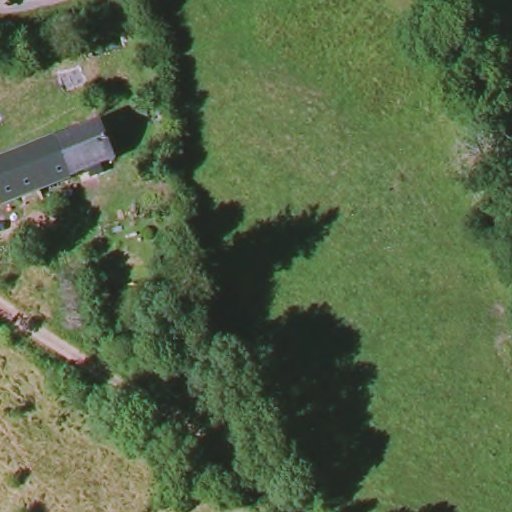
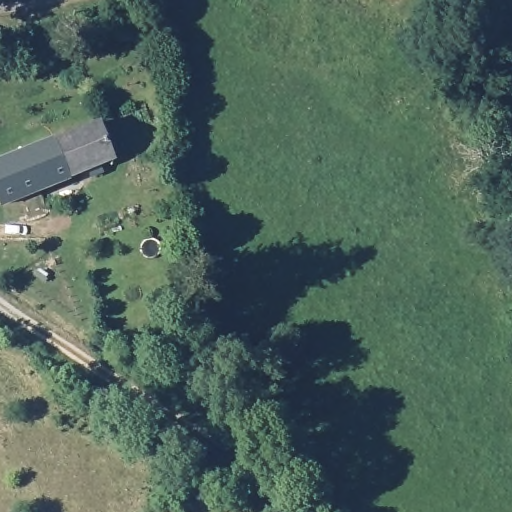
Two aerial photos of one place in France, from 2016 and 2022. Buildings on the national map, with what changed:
unchanged [(124,166),(7,204),(0,181),(0,162),(108,124),(124,166)]

